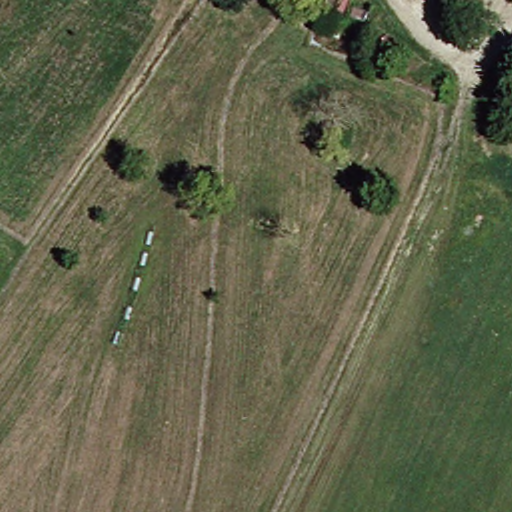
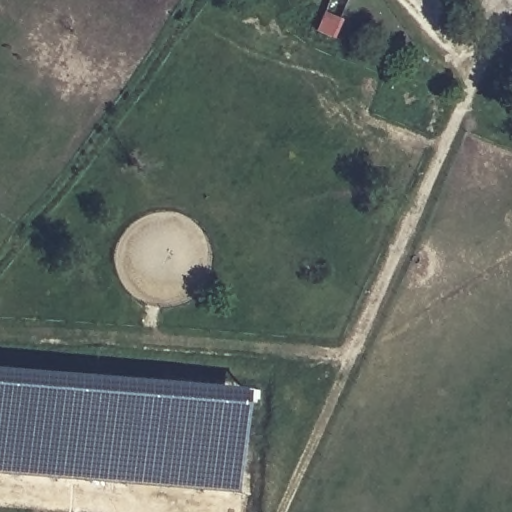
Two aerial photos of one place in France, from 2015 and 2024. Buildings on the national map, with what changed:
unchanged [(345,31),(335,69),(317,65),(328,27),(345,31)]
new [(247,388),(239,492),(0,472),(0,368),(247,388)]

